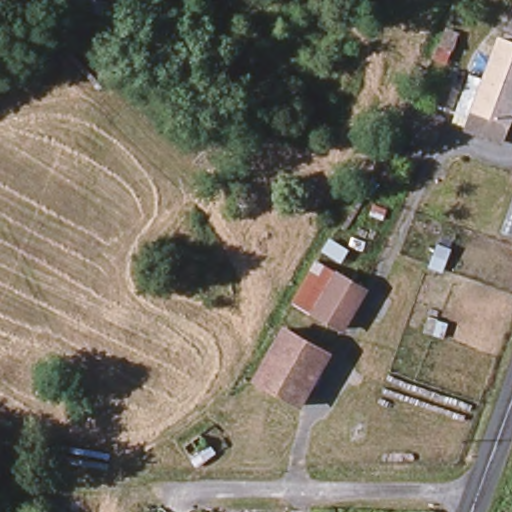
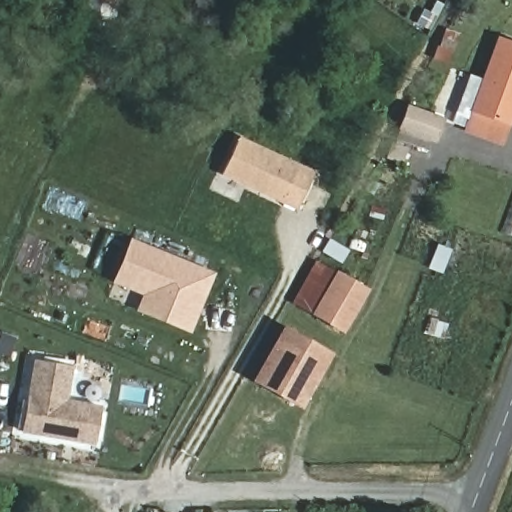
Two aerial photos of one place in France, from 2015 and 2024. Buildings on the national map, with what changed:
unchanged [(453,36),(464,44),(454,55),(443,46),(453,36)]
unchanged [(483,77),(502,39),(512,44),(512,116),(495,152),(443,127),(467,70),(483,77)]
unchanged [(404,113),(440,126),(429,147),(392,133),(404,113)]
new [(235,136),(309,170),(293,205),(218,170),(235,136)]
unchanged [(499,233),(512,194),(512,239),(499,233)]
new [(186,327),(171,321),(137,307),(106,295),(113,279),(129,240),(202,269),(208,272),(186,327)]
unchanged [(370,289),(343,333),(290,304),(315,260),(370,289)]
unchanged [(257,380),(286,331),(332,356),(309,401),(257,380)]
new [(96,444),(20,433),(32,359),(73,366),(67,399),(102,404),(96,444)]
demolished [(215,454),(197,468),(182,449),(200,435),(215,454)]

